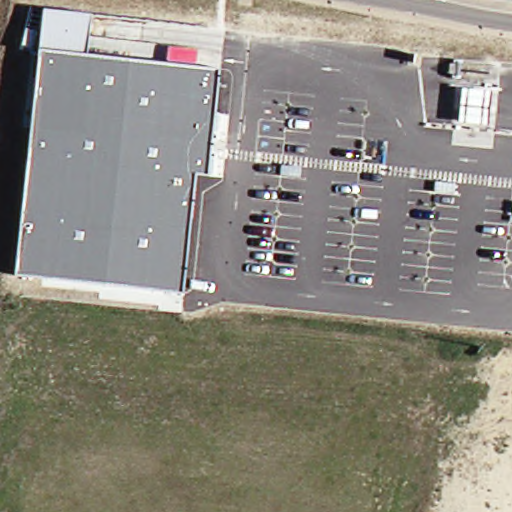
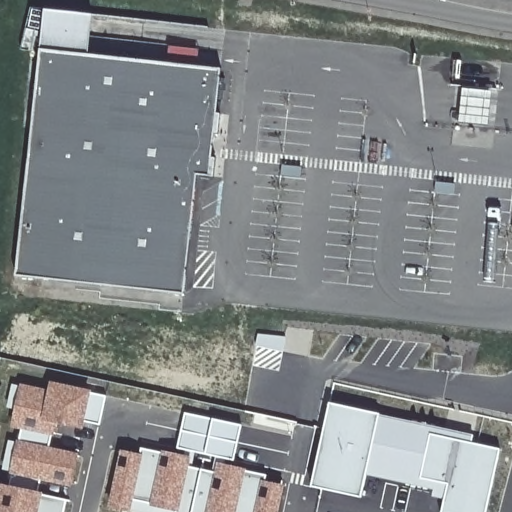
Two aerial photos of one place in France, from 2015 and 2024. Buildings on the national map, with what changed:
unchanged [(87,54),(166,62),(168,45),(198,48),(196,66),(220,69),(209,175),(195,174),(183,294),(17,275),(44,9),(92,14),(87,54)]
new [(100,425),(85,421),(83,428),(54,422),(49,446),(79,453),(72,486),(39,478),(37,492),(42,493),(68,499),(66,512),(0,512),(0,483),(8,485),(16,439),(19,440),(22,429),(11,426),(20,382),(47,388),(49,381),(91,390),(108,395),(100,425)]
new [(471,442),(501,448),(487,512),(441,512),(444,499),(432,496),(433,490),(367,473),(361,497),(310,486),(329,401),(474,435),(471,442)]
new [(234,460),(177,447),(185,411),(242,425),(234,460)]
new [(265,481),(285,485),(279,512),(176,512),(176,511),(149,505),(150,502),(135,498),(132,511),(108,507),(119,448),(140,453),(142,445),(190,456),(188,465),(214,471),(216,462),(267,473),(265,481)]

